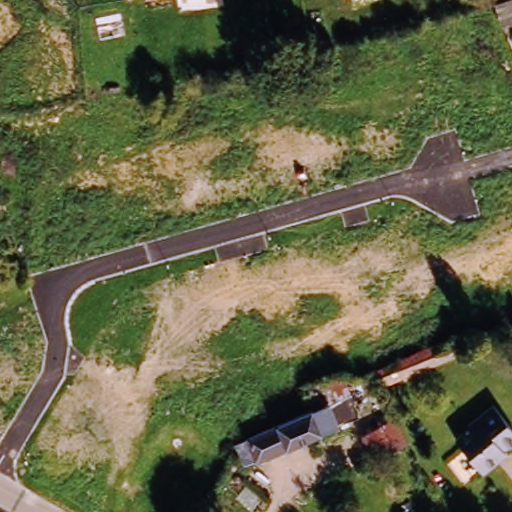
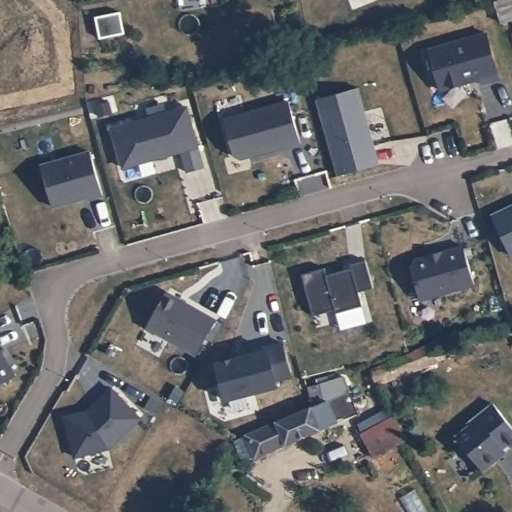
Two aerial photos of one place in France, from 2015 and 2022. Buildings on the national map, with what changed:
demolished [(474,8),(484,42),(342,77),(336,48),(474,8)]
new [(490,35),(502,80),(486,85),(484,80),(443,91),(432,51),(490,35)]
new [(360,88),(381,164),(340,176),(319,100),(360,88)]
new [(291,102),(303,144),(288,149),(287,146),(242,159),(236,156),(226,120),(291,102)]
new [(189,105),(209,180),(195,184),(186,151),(124,168),(112,126),(189,105)]
new [(93,156),(106,200),(90,204),(89,202),(55,211),(44,170),(93,156)]
new [(494,217),(512,209),(512,255),(494,217)]
new [(415,262),(465,248),(476,287),(421,302),(412,268),(415,262)]
new [(326,269),(328,277),(353,270),(352,266),(367,262),(376,292),(361,297),(364,307),(338,314),(337,311),(314,317),(303,276),(326,269)]
new [(167,292),(217,321),(197,356),(147,327),(167,292)]
unchanged [(444,353),(374,387),(368,372),(438,340),(444,353)]
new [(269,348),(268,346),(285,342),(294,375),(278,379),(280,385),(228,398),(218,362),(269,348)]
new [(5,359),(15,375),(0,383),(0,351),(5,359)]
new [(95,410),(96,411),(104,403),(100,400),(112,388),(140,418),(109,448),(73,456),(65,416),(95,410)]
unchanged [(294,422),(319,412),(332,407),(340,403),(347,418),(337,425),(339,431),(328,435),(323,437),(267,462),(242,472),(237,457),(233,447),(294,422)]
unchanged [(512,429),(512,444),(479,475),(451,439),(489,403),(512,429)]
unchanged [(368,457),(356,430),(387,416),(399,444),(368,457)]
demolished [(190,471),(168,505),(153,492),(172,461),(190,471)]

